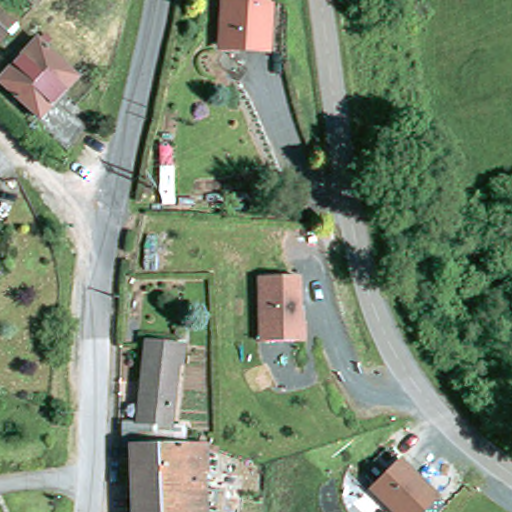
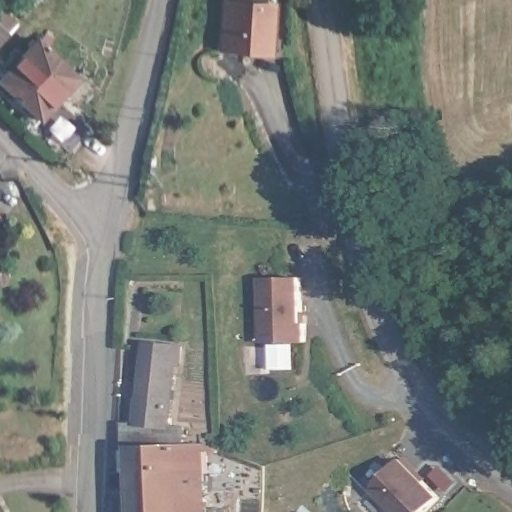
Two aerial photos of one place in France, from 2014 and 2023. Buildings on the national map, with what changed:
unchanged [(227,44),(227,0),(267,0),(269,43),(227,44)]
unchanged [(0,50),(0,24),(14,36),(0,50)]
unchanged [(0,70),(32,36),(81,83),(39,126),(0,87),(0,70)]
unchanged [(243,74),(218,55),(227,44),(252,63),(243,74)]
unchanged [(255,277),(303,275),(305,341),(257,340),(255,277)]
unchanged [(136,439),(127,439),(133,418),(149,421),(155,341),(180,342),(180,361),(175,363),(171,421),(153,421),(151,431),(200,432),(200,442),(207,442),(207,512),(135,512),(136,439)]
unchanged [(439,497),(424,512),(389,512),(367,489),(399,456),(439,497)]

